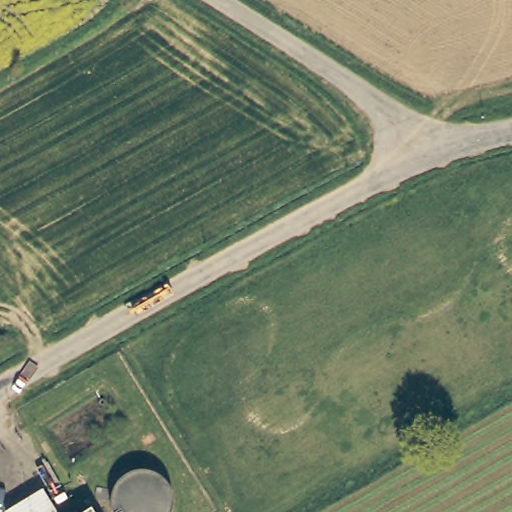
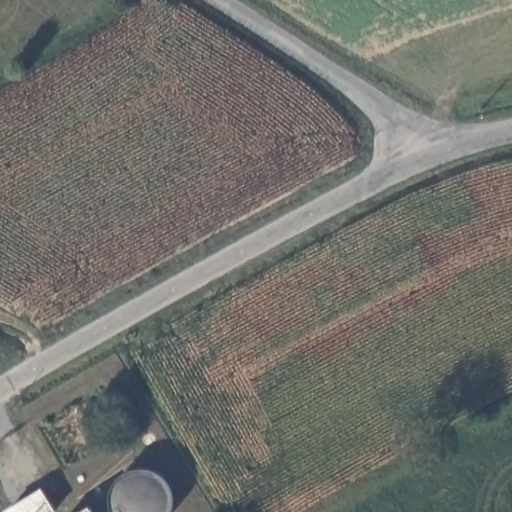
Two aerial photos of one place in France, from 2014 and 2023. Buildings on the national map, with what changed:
unchanged [(0,509),(35,489),(48,512),(47,512),(2,512),(0,509)]
unchanged [(87,510),(88,512),(84,512),(87,510)]

